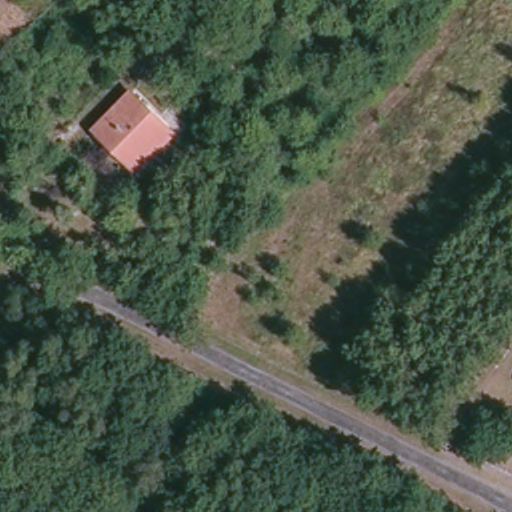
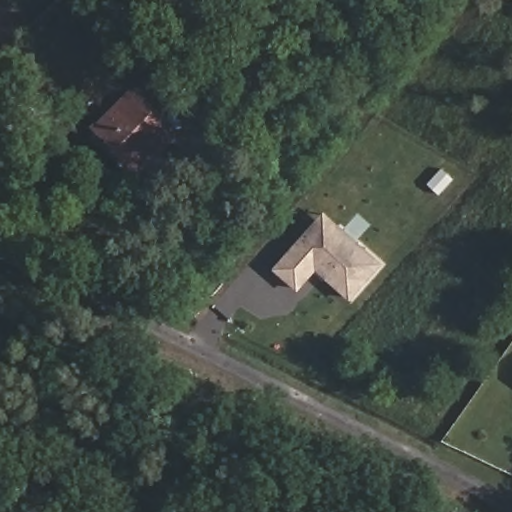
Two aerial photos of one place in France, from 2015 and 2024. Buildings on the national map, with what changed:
unchanged [(116,152),(92,129),(131,91),(171,132),(141,163),(134,170),(116,152)]
new [(324,210),(383,264),(349,301),(315,269),(297,292),(272,268),(324,210)]

